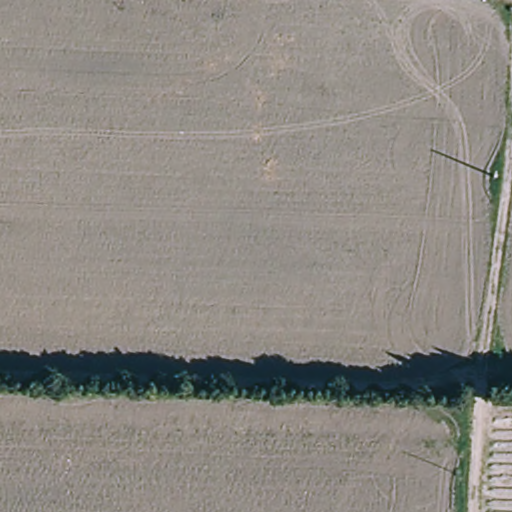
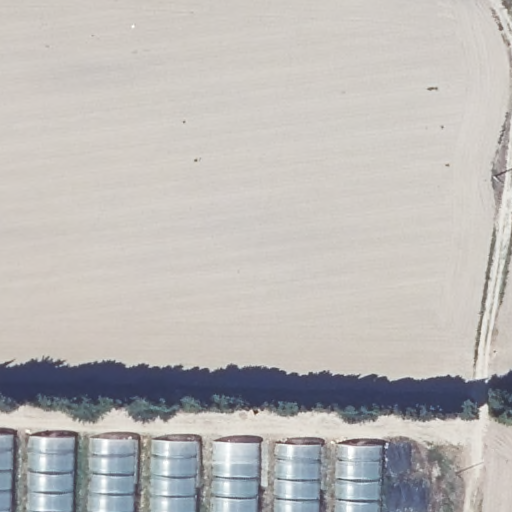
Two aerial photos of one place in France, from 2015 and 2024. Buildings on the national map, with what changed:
new [(9,512),(0,512),(0,435),(11,435),(9,512)]
new [(70,512),(26,512),(28,437),(72,438),(70,512)]
new [(134,439),(132,512),(88,512),(90,438),(134,439)]
new [(194,512),(149,512),(152,439),(196,441),(194,512)]
new [(257,443),(255,512),(212,512),(214,442),(257,443)]
new [(318,512),(272,512),(274,444),(320,444),(318,512)]
new [(381,446),(379,512),(334,512),(336,445),(381,446)]

